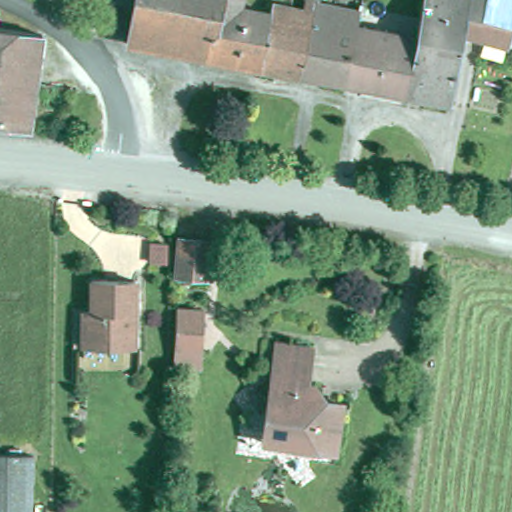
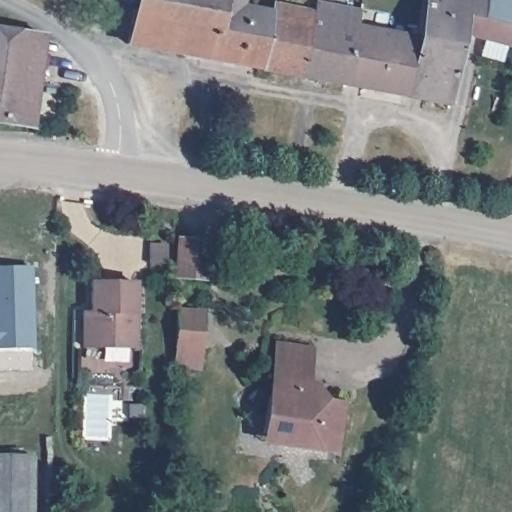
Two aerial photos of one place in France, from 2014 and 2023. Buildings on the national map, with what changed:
unchanged [(128,49),(137,0),(242,0),(241,11),(268,15),(258,73),(128,49)]
unchanged [(268,15),(269,10),(304,16),(306,0),(334,0),(332,9),(356,13),(342,89),(258,73),(268,15)]
unchanged [(474,37),(474,39),(466,38),(449,109),(402,100),(418,24),(422,0),(473,0),(484,3),(474,37)]
unchanged [(474,39),(474,37),(484,3),(473,0),(512,0),(512,39),(510,48),(474,39)]
unchanged [(402,100),(342,89),(356,13),(358,6),(387,11),(386,18),(418,24),(402,100)]
unchanged [(28,129),(0,124),(0,32),(44,39),(28,129)]
unchanged [(211,244),(209,283),(181,281),(183,244),(211,244)]
new [(33,349),(0,349),(0,266),(33,265),(33,349)]
unchanged [(105,349),(80,350),(79,315),(88,315),(88,284),(131,284),(131,346),(105,346),(105,349)]
unchanged [(176,310),(201,312),(198,374),(173,373),(176,310)]
unchanged [(265,436),(277,347),(314,351),(310,387),(317,388),(329,404),(342,407),(336,454),(290,448),(264,444),(265,436)]
unchanged [(32,512),(0,512),(0,460),(33,461),(32,512)]

